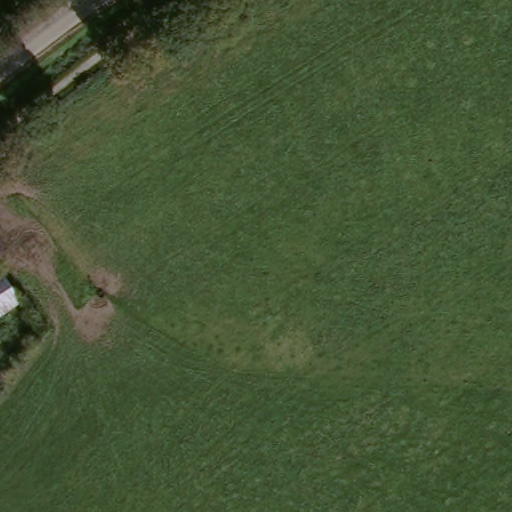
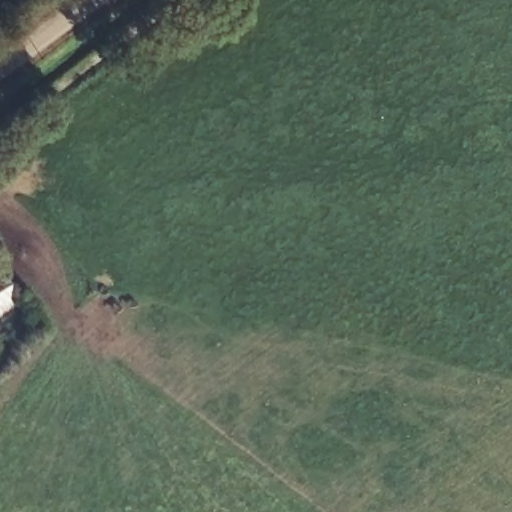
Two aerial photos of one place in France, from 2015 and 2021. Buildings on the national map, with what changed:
unchanged [(2,267),(23,300),(0,315),(0,269),(2,267)]

